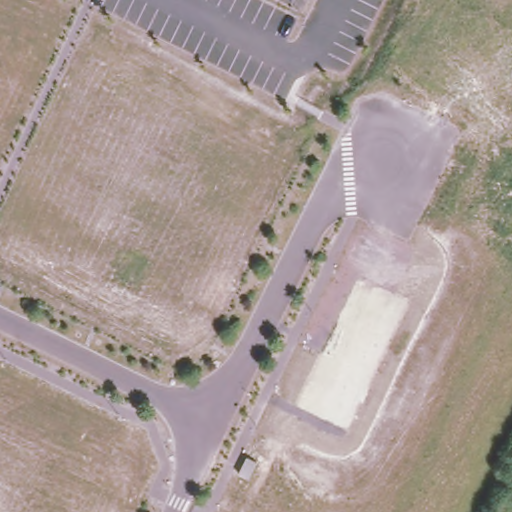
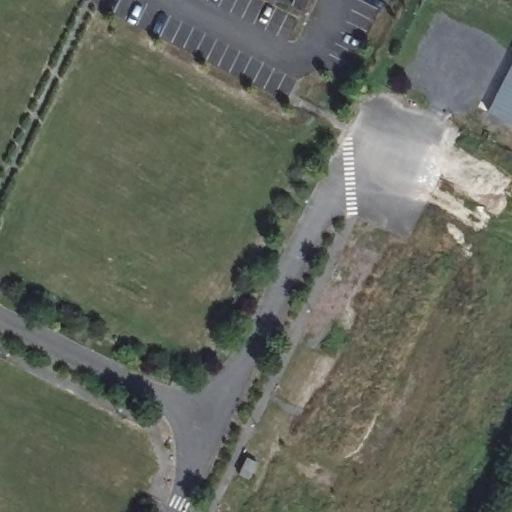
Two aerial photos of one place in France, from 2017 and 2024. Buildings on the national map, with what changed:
new [(487,112),(512,62),(512,125),(487,112)]
unchanged [(257,463),(249,480),(239,475),(247,458),(257,463)]

